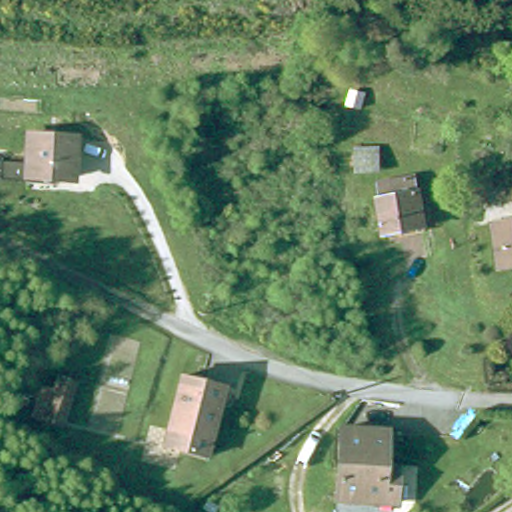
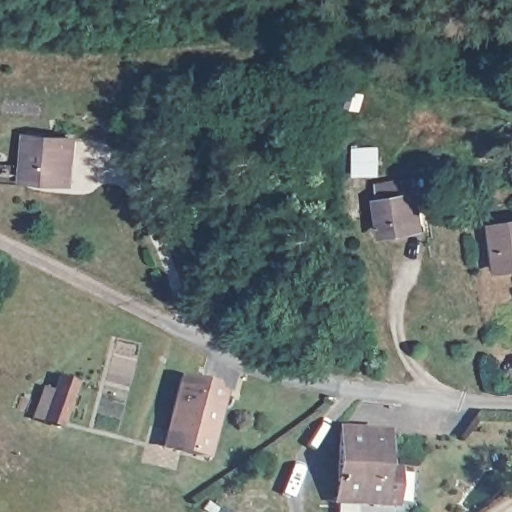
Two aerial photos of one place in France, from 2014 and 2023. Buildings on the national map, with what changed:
unchanged [(24,190),(24,172),(33,172),(34,143),(77,145),(75,182),(62,181),(62,191),(24,190)]
unchanged [(397,237),(396,230),(383,231),(378,200),(381,199),(379,180),(413,175),(416,194),(420,226),(422,234),(397,237)]
unchanged [(505,267),(499,223),(512,221),(512,266),(505,267)]
unchanged [(212,451),(169,443),(181,373),(225,380),(212,451)]
unchanged [(63,377),(78,381),(77,383),(66,426),(52,422),(39,418),(47,389),(60,392),(63,377)]
unchanged [(344,435),(388,436),(387,473),(400,473),(399,506),(340,502),(344,435)]

